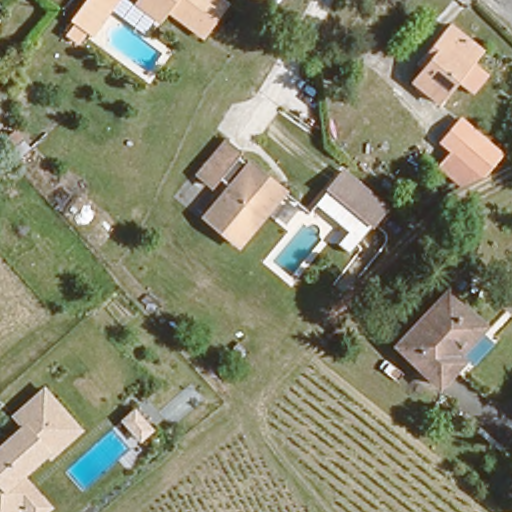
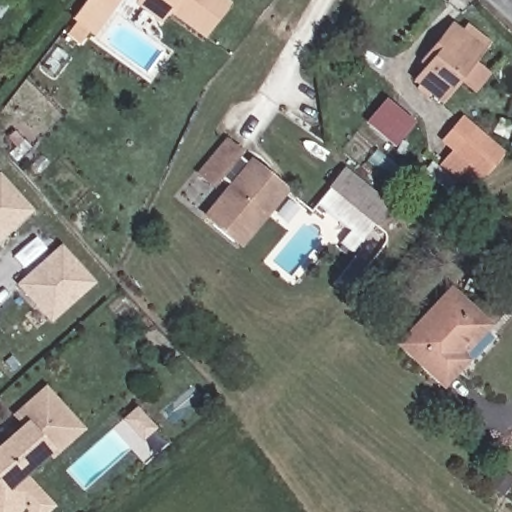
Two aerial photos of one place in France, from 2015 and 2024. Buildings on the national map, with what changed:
unchanged [(75,32),(66,44),(57,38),(69,25),(65,23),(83,0),(106,0),(101,6),(81,36),(75,32)]
unchanged [(207,28),(169,4),(161,15),(140,0),(222,0),(226,3),(207,28)]
unchanged [(412,81),(429,60),(421,52),(440,30),(448,19),(481,47),(471,58),(434,101),(412,81)]
new [(364,124),(385,99),(415,123),(394,148),(364,124)]
unchanged [(472,186),(437,157),(465,124),(501,153),(472,186)]
unchanged [(265,209),(232,244),(207,219),(218,207),(211,200),(219,192),(226,199),(240,197),(238,182),(226,182),(217,173),(205,185),(191,170),(229,132),(242,145),(236,153),(244,162),(253,156),(278,181),(286,188),(265,209)]
unchanged [(342,252),(331,242),(341,231),(311,202),(330,181),(340,170),(382,208),(375,216),(342,252)]
new [(34,212),(0,245),(0,176),(2,175),(34,212)]
new [(61,246),(97,283),(51,323),(16,284),(61,246)]
unchanged [(452,365),(436,381),(395,339),(442,288),(476,318),(442,352),(452,365)]
unchanged [(25,512),(0,512),(0,444),(2,446),(24,427),(14,414),(48,385),(87,430),(32,478),(55,507),(49,512),(25,512)]

